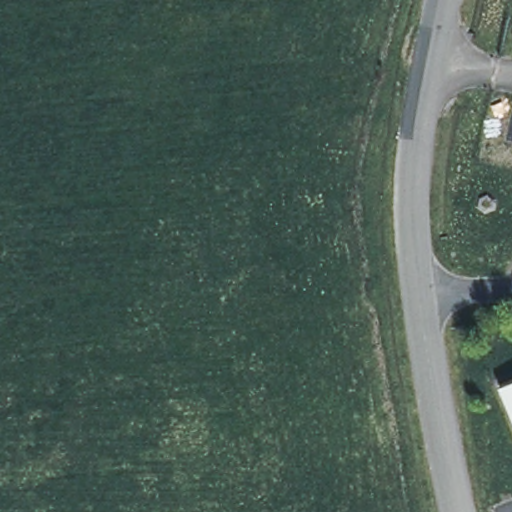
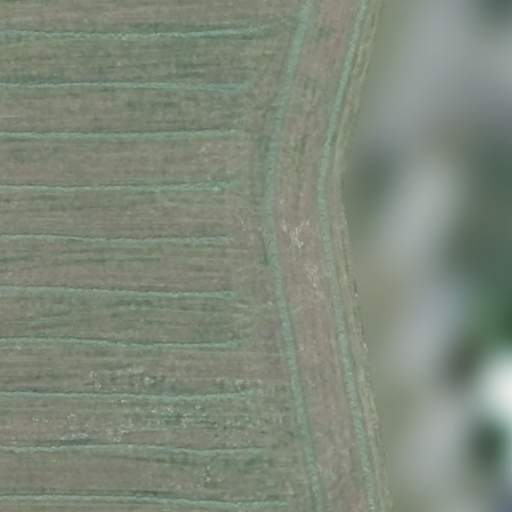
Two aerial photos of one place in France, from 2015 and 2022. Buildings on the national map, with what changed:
unchanged [(500,379),(512,374),(512,407),(500,379)]

